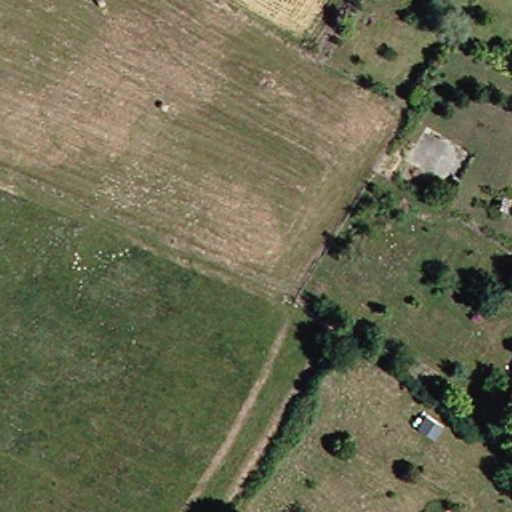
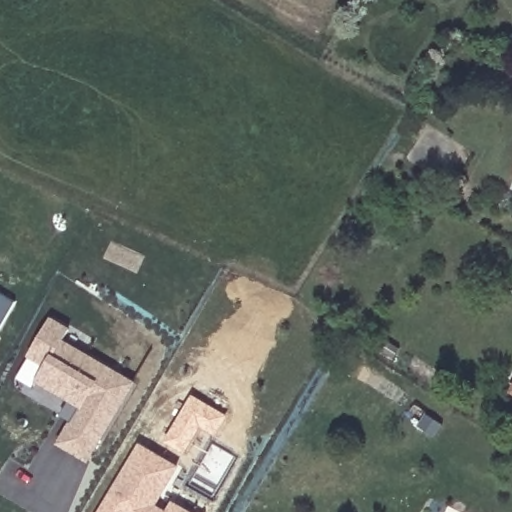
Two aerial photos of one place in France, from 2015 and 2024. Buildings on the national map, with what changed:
new [(37,381),(46,365),(29,355),(50,320),(67,330),(60,342),(117,375),(131,383),(125,394),(86,460),(58,443),(71,422),(60,415),(70,400),(37,381)]
new [(164,442),(192,394),(227,416),(215,436),(200,427),(185,452),(164,442)]
new [(176,468),(153,506),(163,512),(100,512),(140,446),(176,468)]
new [(185,512),(166,512),(171,504),(185,512)]

